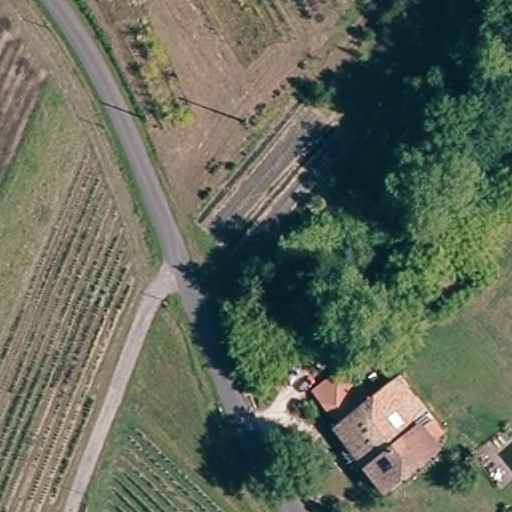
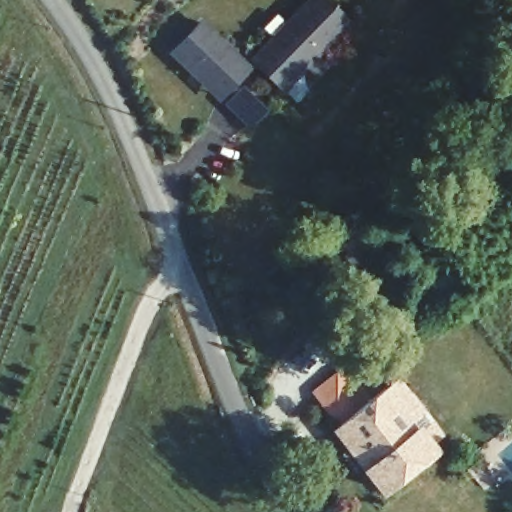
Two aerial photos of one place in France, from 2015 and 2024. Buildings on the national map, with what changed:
new [(312,0),(331,0),(351,21),(283,85),(254,55),(312,0)]
new [(214,88),(177,50),(206,22),(253,70),(232,90),(224,99),(214,88)]
unchanged [(387,502),(383,495),(362,464),(350,473),(339,457),(352,449),(332,419),(338,415),(314,381),(338,364),(347,358),(356,370),(372,394),(387,384),(401,375),(423,410),(419,413),(429,427),(439,420),(453,441),(443,447),(434,453),(438,460),(442,466),(387,502)]

